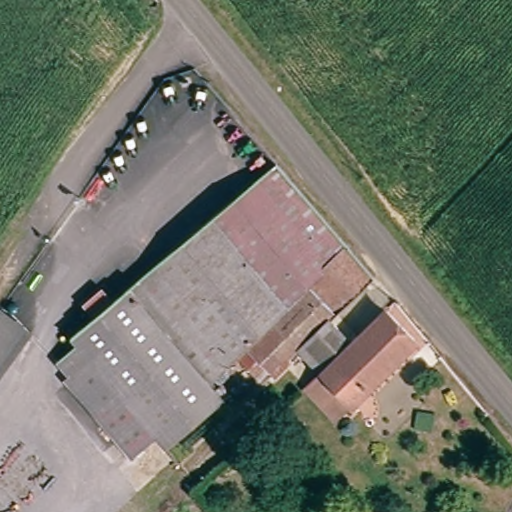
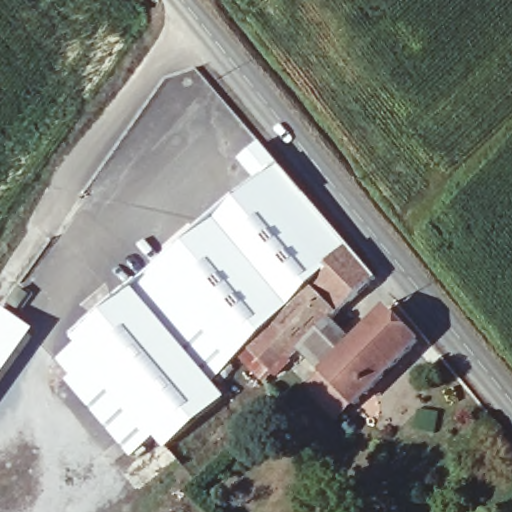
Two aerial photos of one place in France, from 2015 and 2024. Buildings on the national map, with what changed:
unchanged [(374,278),(331,319),(296,351),(262,382),(240,361),(239,361),(213,385),(226,401),(165,452),(154,440),(130,460),(64,379),(69,374),(58,361),(79,342),(72,338),(278,166),(374,278)]
unchanged [(331,319),(351,341),(386,306),(424,344),(339,422),(306,384),(318,375),(296,351),(331,319)]
unchanged [(0,373),(0,313),(29,333),(0,373)]

